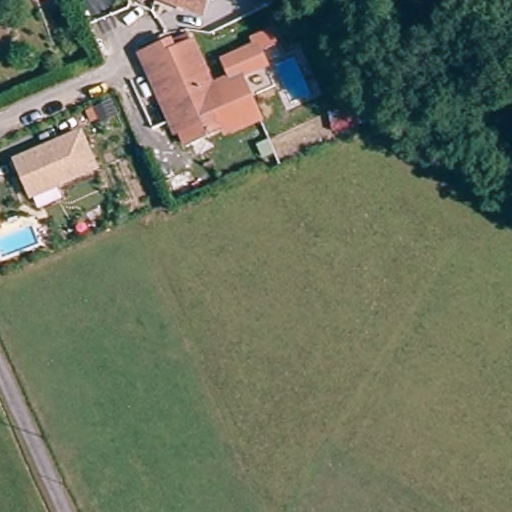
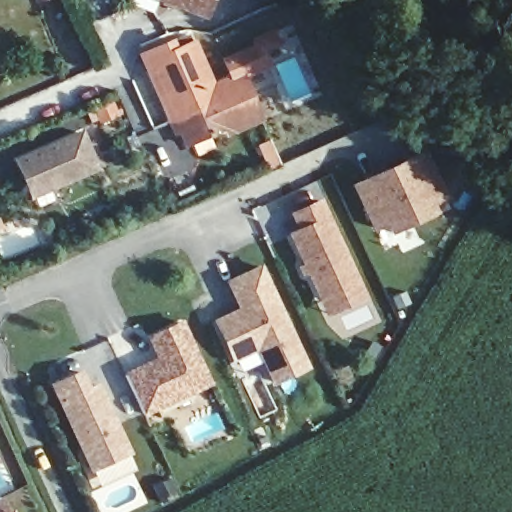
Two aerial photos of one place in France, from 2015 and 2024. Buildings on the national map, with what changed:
unchanged [(36,0),(51,0),(54,9),(40,13),(36,0)]
unchanged [(199,16),(172,5),(161,0),(205,0),(199,16)]
unchanged [(227,128),(189,144),(157,69),(155,70),(148,53),(175,43),(194,35),(197,44),(215,83),(217,83),(229,77),(221,59),(254,45),(253,43),(270,36),(275,48),(259,55),(265,69),(246,77),(264,119),(237,130),(234,131),(230,133),(227,128)]
unchanged [(109,107),(114,121),(97,127),(92,113),(109,107)]
unchanged [(79,136),(93,172),(30,197),(16,161),(79,136)]
new [(446,198),(432,204),(437,212),(391,233),(386,225),(372,232),(350,185),(423,150),(446,198)]
new [(328,316),(288,235),(297,230),(290,214),(323,198),(368,298),(328,316)]
new [(273,386),(258,352),(234,362),(216,320),(240,308),(227,282),(262,266),(311,368),(273,386)]
new [(148,372),(154,373),(164,369),(152,344),(184,330),(210,391),(146,419),(144,420),(127,381),(148,372)]
new [(130,458),(93,475),(55,389),(82,377),(90,395),(99,391),(115,425),(118,432),(130,458)]
new [(0,512),(0,499),(2,498),(8,512),(0,512)]

